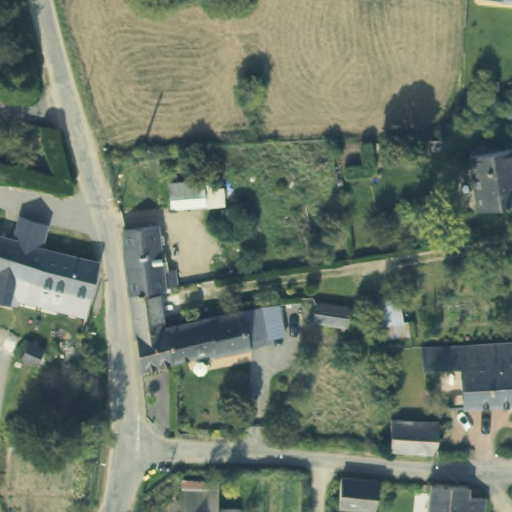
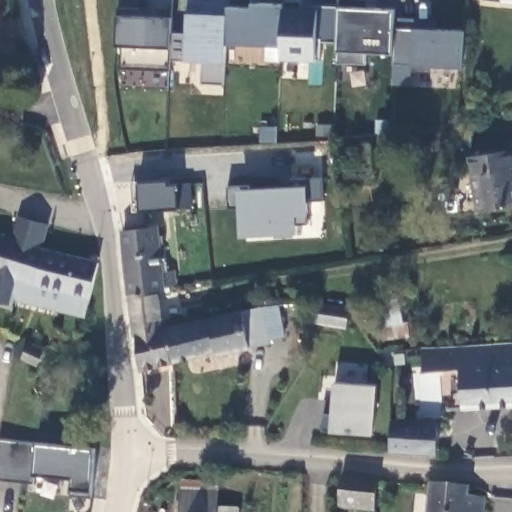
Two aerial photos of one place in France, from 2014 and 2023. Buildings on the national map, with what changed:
new [(281,47),(225,44),(223,64),(222,85),(200,83),(202,63),(186,61),(170,59),(168,70),(119,67),(121,45),(116,45),(117,16),(146,17),(147,0),(163,0),(171,0),(170,20),(170,35),(186,35),(187,12),(187,0),(226,0),(227,5),(249,6),(251,2),(283,5),(281,47)]
new [(283,0),(301,1),(301,10),(316,10),(316,6),(337,7),(336,44),(321,42),(320,60),(280,59),(283,0)]
new [(463,67),(410,65),(392,65),(392,54),(368,52),(365,65),(334,62),(335,50),(336,44),(337,7),(338,0),(367,0),(367,9),(394,10),(394,28),(413,29),(465,30),(463,67)]
unchanged [(512,2),(488,0),(512,0),(512,2)]
unchanged [(469,156),(512,151),(512,205),(478,210),(469,156)]
new [(139,210),(138,182),(168,179),(169,185),(177,185),(178,209),(139,210)]
unchanged [(158,228),(162,273),(175,270),(177,284),(160,286),(131,291),(124,229),(158,228)]
unchanged [(0,269),(0,233),(42,245),(34,278),(0,269)]
unchanged [(56,283),(37,280),(34,278),(42,245),(83,255),(87,255),(98,258),(90,291),(56,283)]
unchanged [(166,330),(174,360),(141,370),(138,335),(134,335),(131,291),(160,286),(166,330)]
unchanged [(402,322),(377,326),(373,302),(398,299),(402,322)]
unchanged [(349,330),(312,325),(314,303),(352,310),(349,330)]
unchanged [(262,305),(279,304),(286,335),(269,338),(270,344),(215,356),(214,353),(174,360),(166,330),(245,310),(262,307),(262,305)]
unchanged [(460,366),(423,368),(423,345),(512,340),(512,401),(462,403),(460,366)]
unchanged [(43,352),(37,366),(22,358),(27,345),(43,352)]
new [(374,436),(331,434),(322,432),(323,416),(331,417),(334,382),(376,385),(374,436)]
unchanged [(444,419),(441,449),(395,447),(396,417),(444,419)]
new [(38,443),(38,437),(96,443),(96,447),(93,448),(92,491),(90,496),(71,495),(72,489),(73,477),(34,475),(33,483),(0,479),(0,440),(38,443)]
unchanged [(184,476),(220,478),(219,487),(219,505),(239,505),(239,512),(184,512),(184,486),(184,476)]
unchanged [(356,512),(338,511),(341,481),(376,482),(374,512),(356,512)]
unchanged [(470,489),(469,498),(485,500),(484,512),(428,512),(430,485),(470,489)]

